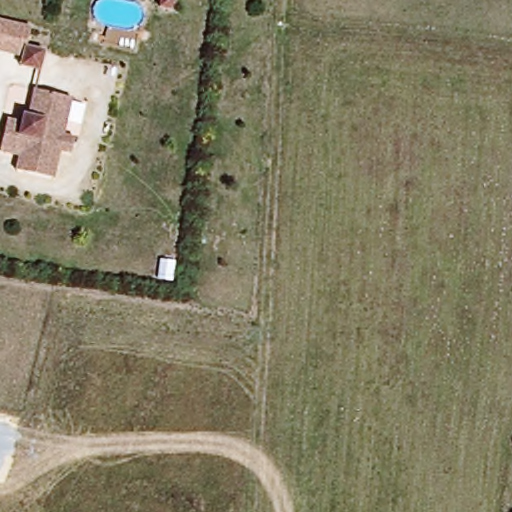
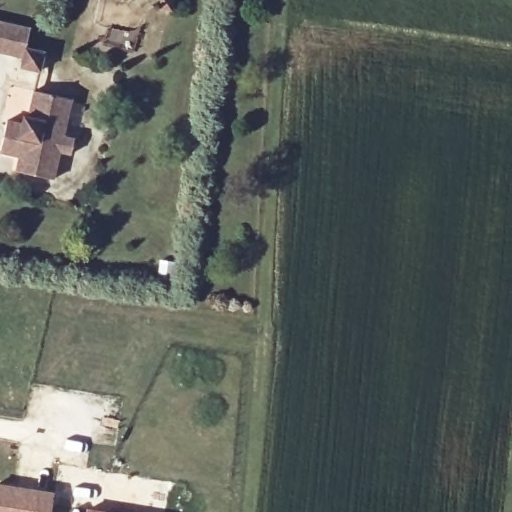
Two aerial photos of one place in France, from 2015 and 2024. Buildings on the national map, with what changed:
unchanged [(41,73),(21,70),(23,60),(0,55),(0,23),(27,30),(24,49),(44,52),(41,73)]
unchanged [(14,175),(16,161),(0,158),(0,137),(3,124),(23,126),(28,89),(69,98),(63,139),(73,140),(73,157),(59,156),(54,183),(14,175)]
new [(54,491),(51,512),(0,512),(0,483),(54,491)]
new [(85,506),(117,512),(84,512),(85,506)]

